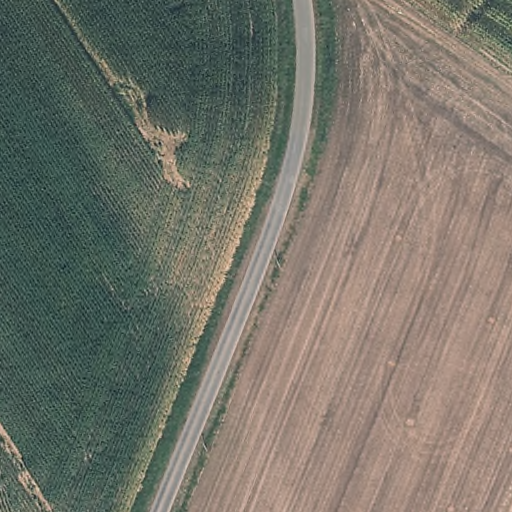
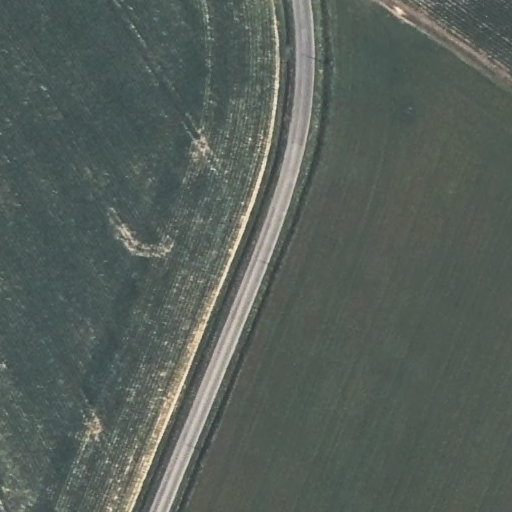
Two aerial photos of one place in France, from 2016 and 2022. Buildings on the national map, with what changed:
[]

